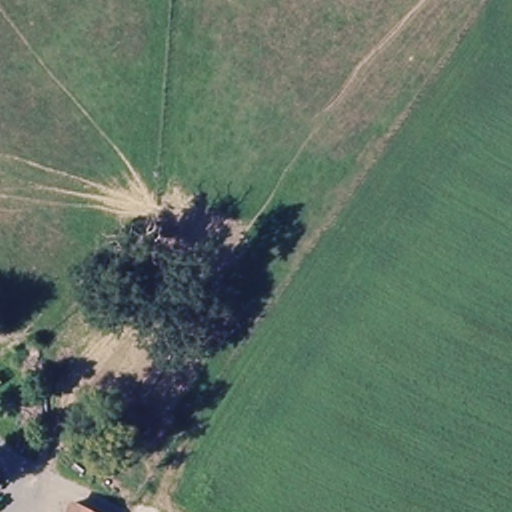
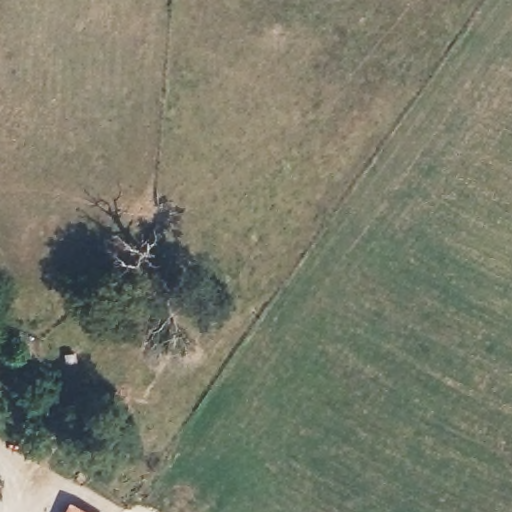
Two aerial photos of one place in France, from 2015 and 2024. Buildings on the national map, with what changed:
unchanged [(89,512),(68,512),(73,502),(89,512)]

